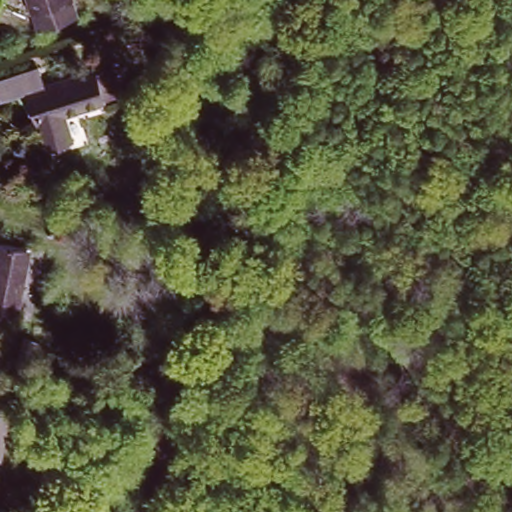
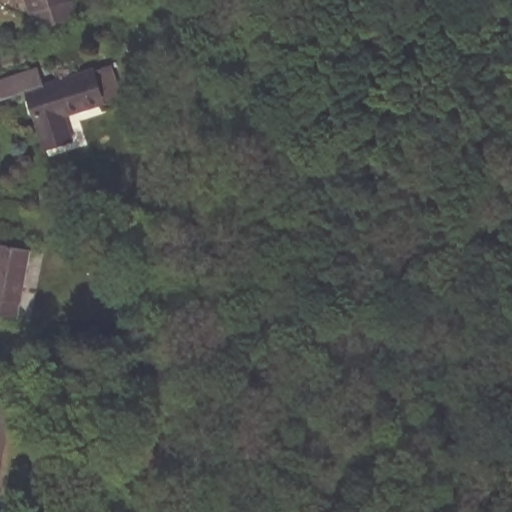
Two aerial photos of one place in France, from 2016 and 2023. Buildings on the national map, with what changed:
unchanged [(35,24),(28,0),(73,0),(76,11),(35,24)]
unchanged [(69,141),(44,148),(26,92),(0,101),(0,99),(0,81),(38,70),(43,86),(93,70),(93,71),(110,66),(119,96),(102,101),(103,103),(63,114),(69,141)]
unchanged [(15,306),(14,306),(11,320),(0,317),(0,246),(26,252),(15,306)]
unchanged [(14,424),(0,499),(0,421),(14,424)]

